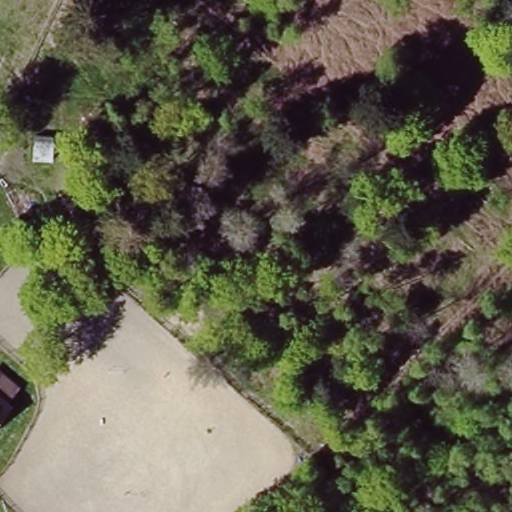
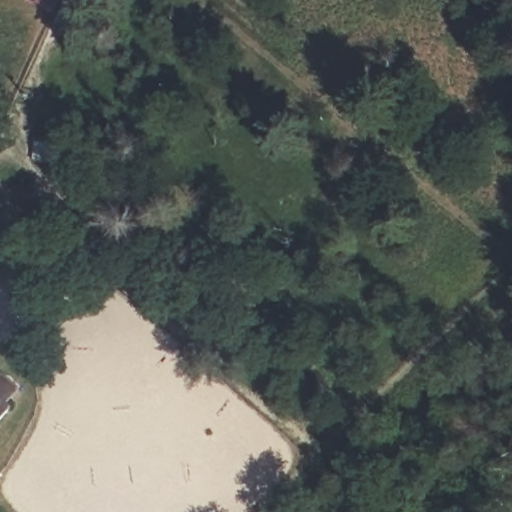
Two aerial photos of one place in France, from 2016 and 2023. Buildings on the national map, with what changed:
unchanged [(10,409),(0,421),(0,400),(10,409)]

